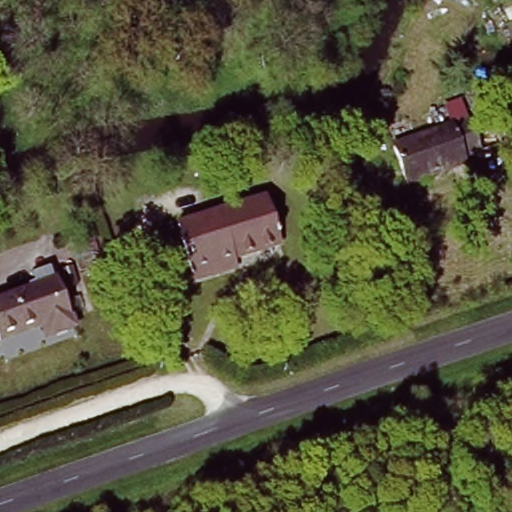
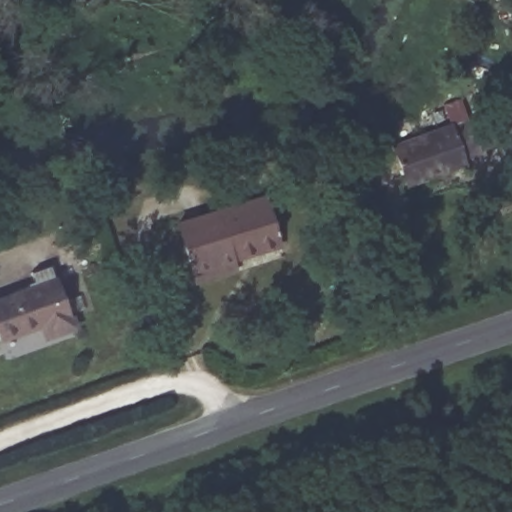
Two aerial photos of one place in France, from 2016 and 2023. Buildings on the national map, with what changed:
unchanged [(475,154),(437,167),(440,176),(402,188),(388,145),(466,120),(475,154)]
unchanged [(283,242),(255,251),(252,247),(235,252),(237,259),(196,272),(180,223),(268,195),(283,242)]
unchanged [(45,337),(38,322),(0,337),(0,298),(53,276),(74,326),(45,337)]

